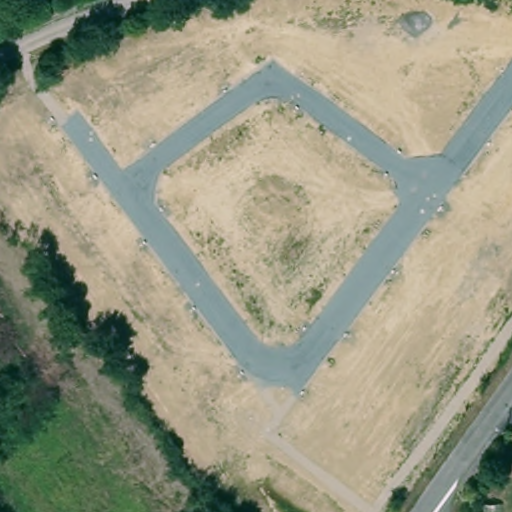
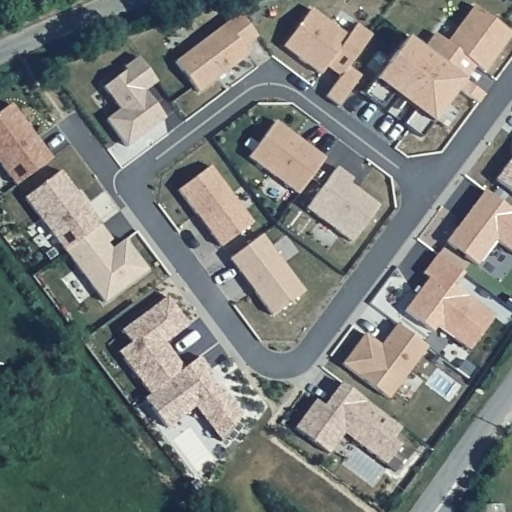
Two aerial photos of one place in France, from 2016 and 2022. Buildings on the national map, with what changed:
new [(382,105),(364,92),(408,35),(423,46),(434,31),(446,40),(474,4),(511,31),(483,69),(475,63),(465,77),(485,92),(478,100),(458,85),(422,135),(405,122),(416,107),(393,90),(382,105)]
new [(327,65),(321,72),(283,45),(311,7),(348,34),(356,22),(371,33),(348,65),(360,74),(338,104),(326,95),(341,75),(327,65)]
new [(239,12),(257,35),(243,46),(248,53),(198,91),(175,60),(239,12)]
new [(126,69),(124,66),(138,56),(156,80),(145,90),(165,116),(126,145),(106,119),(120,108),(103,86),(126,69)]
new [(42,144),(52,157),(16,185),(0,163),(0,111),(11,103),(27,125),(42,144)]
new [(296,135),(311,146),(325,156),(298,192),(249,155),(275,120),(296,135)]
new [(497,179),(512,159),(512,190),(497,179)]
new [(220,246),(177,190),(211,165),(251,220),(220,246)]
new [(337,165),(352,177),(349,181),(379,204),(352,240),(307,206),(337,165)]
new [(77,191),(91,210),(101,224),(66,250),(25,197),(61,170),(77,191)]
new [(458,225),(463,228),(477,209),(472,205),(485,188),(512,208),(512,249),(496,237),(477,263),(446,240),(458,225)]
new [(112,239),(107,242),(112,249),(126,239),(148,268),(105,301),(66,250),(101,224),(112,239)]
new [(271,315),(229,258),(263,234),(303,290),(271,315)]
new [(430,275),(424,271),(438,252),(463,271),(454,283),(495,313),(470,347),(437,323),(433,330),(405,308),(430,275)]
new [(121,330),(167,295),(189,324),(165,342),(171,350),(184,367),(150,393),(123,358),(118,351),(130,342),(121,330)]
new [(382,343),(387,335),(398,322),(428,345),(390,396),(343,362),(366,332),(382,343)]
new [(150,393),(184,367),(200,355),(210,369),(206,372),(217,387),(220,385),(242,414),(222,440),(195,405),(166,427),(144,397),(150,393)]
new [(324,403),(332,394),(342,380),(402,425),(393,436),(401,442),(386,461),(345,431),(329,451),(295,426),(316,397),(324,403)]

